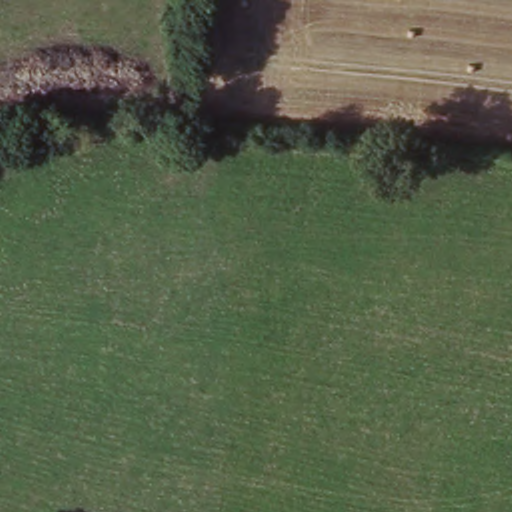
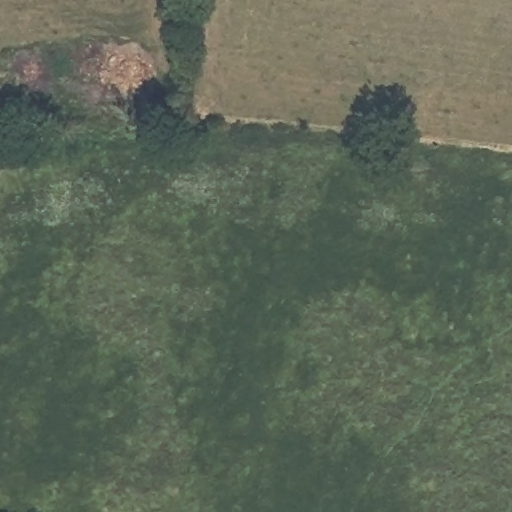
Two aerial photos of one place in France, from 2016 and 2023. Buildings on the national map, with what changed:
[]

